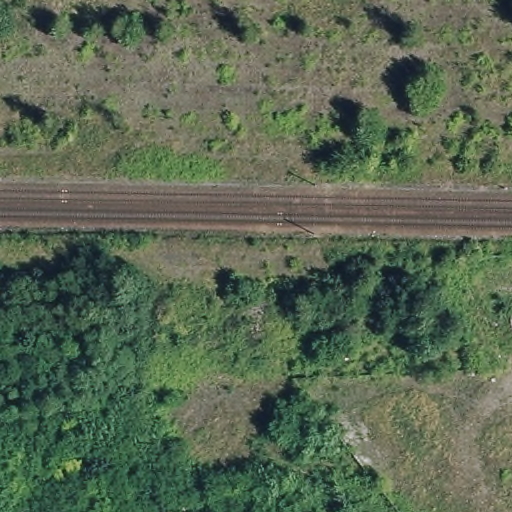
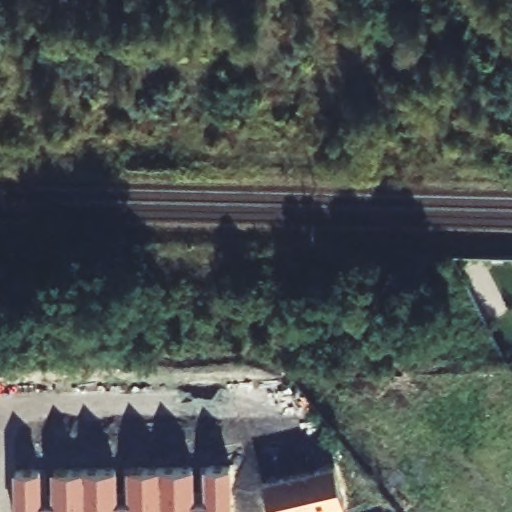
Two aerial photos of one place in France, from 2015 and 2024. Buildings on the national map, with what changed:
new [(264,481),(335,465),(344,503),(306,512),(271,512),(264,481)]
new [(204,467),(232,466),(233,512),(16,512),(14,471),(42,470),(43,497),(52,496),(51,470),(118,468),(119,496),(128,495),(127,468),(194,467),(196,494),(206,494),(204,467)]

